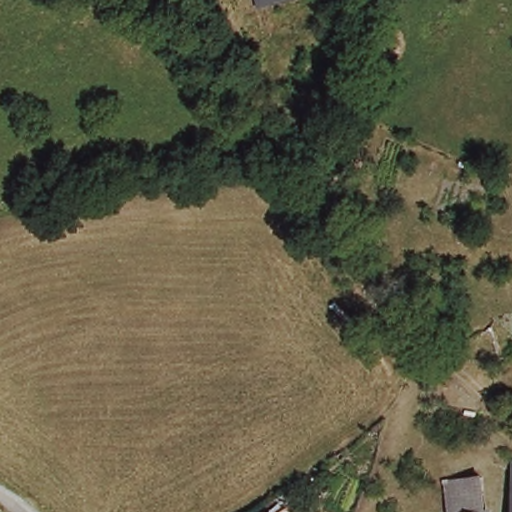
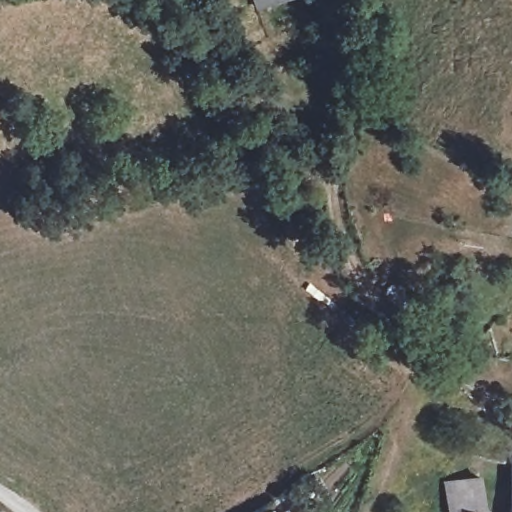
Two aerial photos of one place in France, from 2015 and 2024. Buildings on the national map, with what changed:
unchanged [(442,487),(491,482),(492,512),(444,512),(442,487)]
unchanged [(512,512),(511,512),(512,502),(512,512)]

